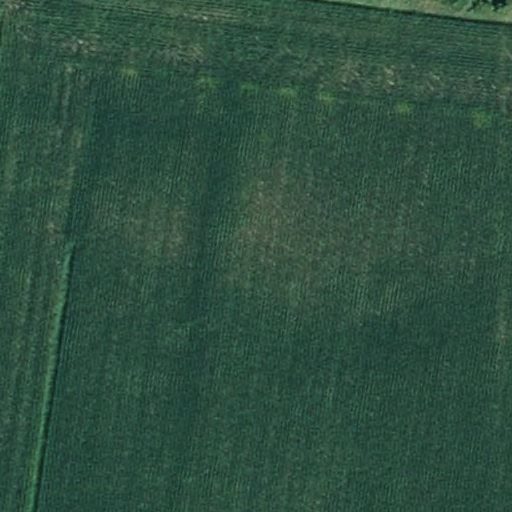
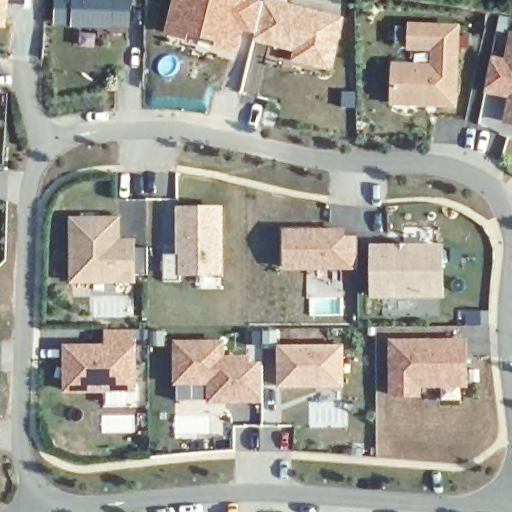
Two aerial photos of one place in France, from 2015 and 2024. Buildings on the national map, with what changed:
new [(0,27),(0,0),(8,0),(6,27),(0,27)]
new [(56,0),(132,0),(132,30),(55,27),(56,0)]
new [(255,0),(264,2),(257,35),(245,32),(239,55),(215,49),(216,44),(189,37),(187,41),(166,35),(174,0),(255,0)]
new [(295,52),(255,42),(264,0),(275,0),(346,17),(332,73),(292,62),(295,52)]
new [(391,107),(392,63),(430,65),(431,51),(408,51),(408,23),(461,26),(457,107),(391,107)]
new [(496,90),(502,60),(512,62),(512,92),(496,90)]
new [(225,206),(226,277),(181,277),(181,282),(166,282),(166,253),(178,254),(177,207),(225,206)]
new [(127,222),(127,244),(142,244),(142,283),(82,283),(81,222),(127,222)]
new [(284,230),(346,228),(346,237),(357,237),(358,270),(285,271),(284,230)]
new [(445,245),(445,300),(371,300),(371,245),(445,245)]
new [(137,328),(138,395),(64,395),(64,346),(105,346),(105,328),(137,328)]
new [(468,387),(422,387),(422,400),(391,399),(390,339),(468,337),(468,387)]
new [(208,405),(208,387),(175,386),(174,342),(226,340),(226,356),(251,356),(251,362),(262,362),(263,403),(208,405)]
new [(346,343),(347,389),(279,390),(278,345),(346,343)]

